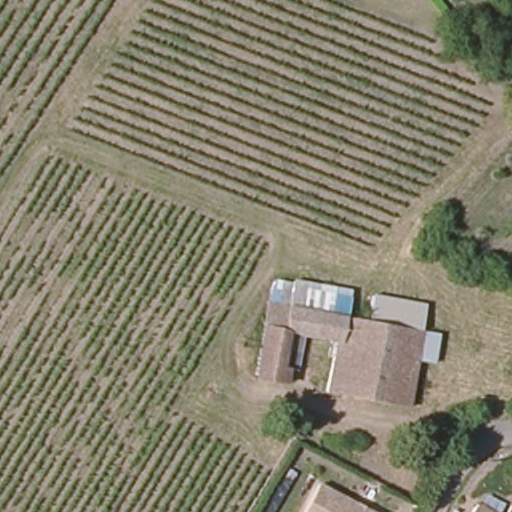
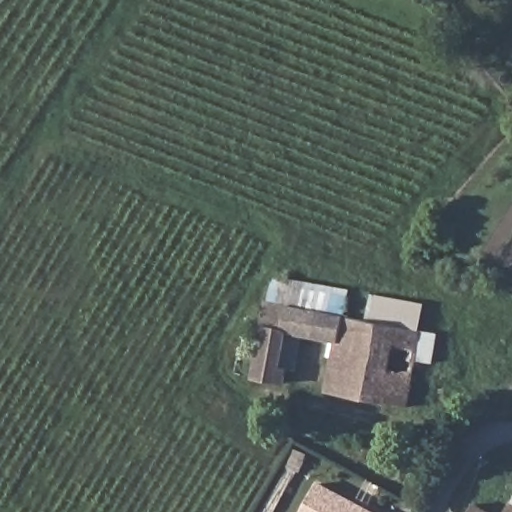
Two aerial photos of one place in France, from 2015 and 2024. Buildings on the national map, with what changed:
unchanged [(285,379),(257,374),(269,301),(287,304),(281,341),(286,341),(282,366),(288,366),(285,379)]
unchanged [(410,402),(329,386),(332,361),(338,361),(340,351),(301,346),(297,366),(288,366),(282,366),(286,341),(281,341),(287,304),(415,325),(424,326),(417,367),(410,402)]
unchanged [(378,512),(302,512),(318,481),(378,512)]
unchanged [(512,512),(507,512),(512,503),(512,512)]
unchanged [(494,512),(477,512),(481,504),(494,512)]

